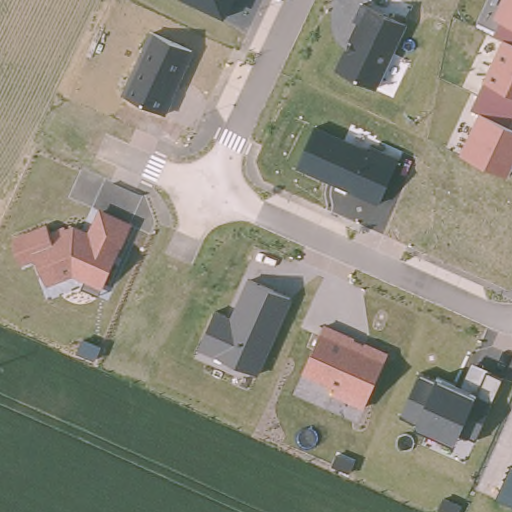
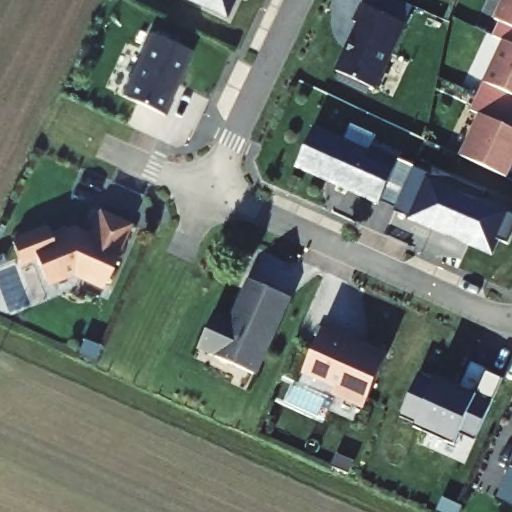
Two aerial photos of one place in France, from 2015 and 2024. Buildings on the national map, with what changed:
unchanged [(225,19),(187,0),(234,0),(225,19)]
unchanged [(509,178),(457,154),(477,112),(470,109),(502,39),(493,35),(500,21),(493,18),(502,0),(512,0),(512,169),(509,178)]
unchanged [(407,23),(376,89),(334,70),(364,5),(407,23)]
unchanged [(194,50),(166,115),(122,96),(150,29),(194,50)]
unchanged [(398,163),(380,205),(296,168),(314,126),(398,163)]
new [(429,174),(410,217),(395,210),(396,207),(382,202),(398,163),(429,174)]
new [(486,191),(481,200),(512,215),(512,233),(506,245),(496,241),(490,254),(467,244),(469,239),(429,221),(427,225),(410,217),(432,166),(486,191)]
unchanged [(131,222),(102,289),(73,276),(47,285),(37,260),(21,266),(12,241),(12,236),(47,224),(49,232),(70,223),(89,229),(98,208),(131,222)]
unchanged [(292,297),(258,375),(199,350),(215,310),(231,317),(247,279),(292,297)]
unchanged [(389,352),(365,407),(334,394),(336,389),(303,376),(325,323),(389,352)]
unchanged [(439,378),(462,388),(473,362),(489,369),(487,372),(501,378),(476,438),(461,431),(455,447),(414,428),(399,418),(419,370),(439,378)]
unchanged [(495,500),(510,465),(512,466),(512,508),(495,500)]

